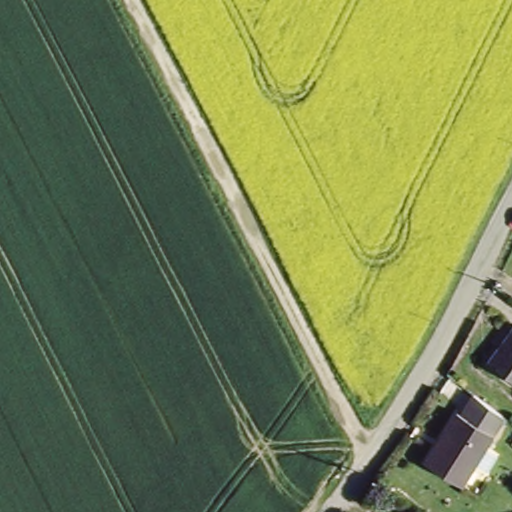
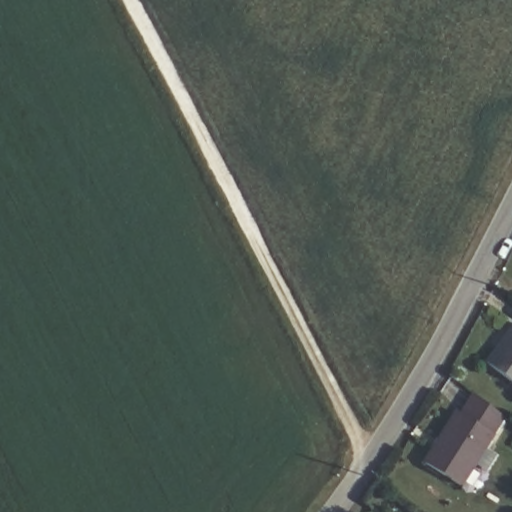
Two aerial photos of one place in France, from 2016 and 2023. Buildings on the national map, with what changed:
unchanged [(510,395),(482,369),(512,335),(512,336),(512,392),(510,395)]
unchanged [(484,432),(456,477),(428,458),(459,409),(484,432)]

